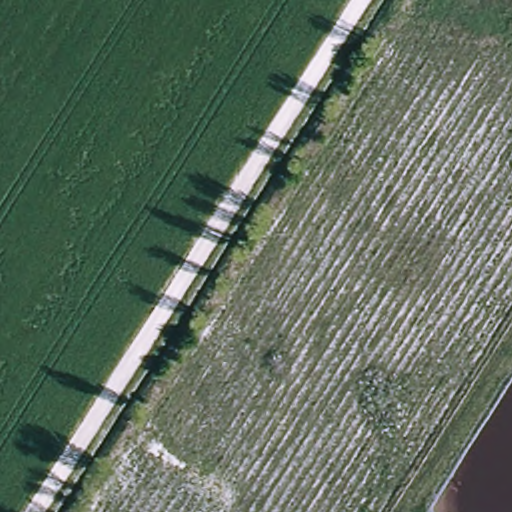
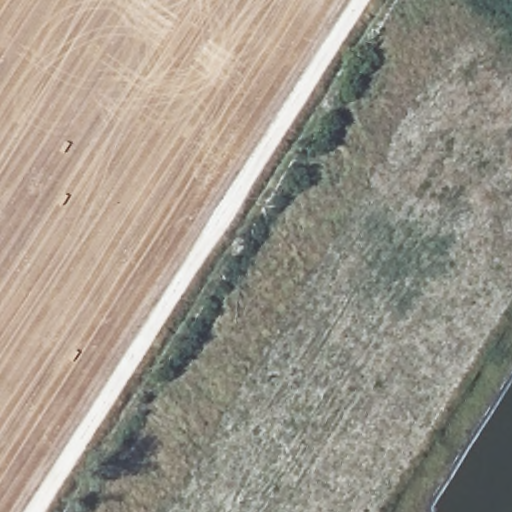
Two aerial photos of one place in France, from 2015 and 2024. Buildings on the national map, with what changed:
[]

